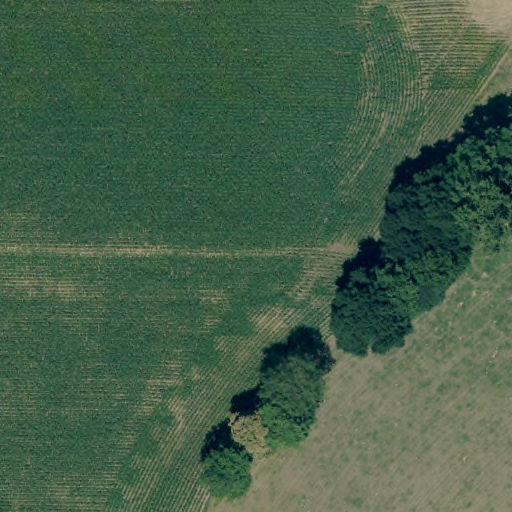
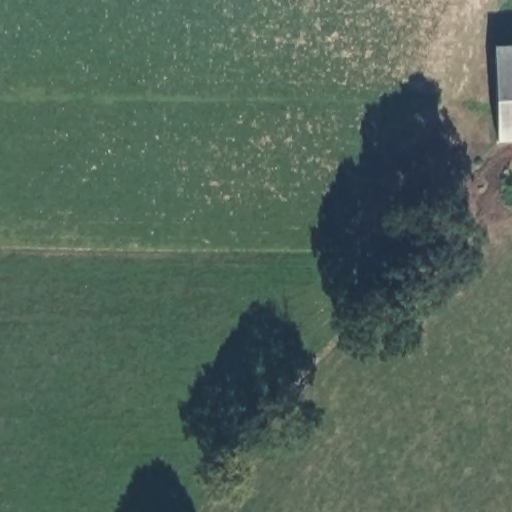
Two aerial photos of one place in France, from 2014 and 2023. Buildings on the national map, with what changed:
new [(512,45),(512,144),(497,144),(494,45),(512,45)]

